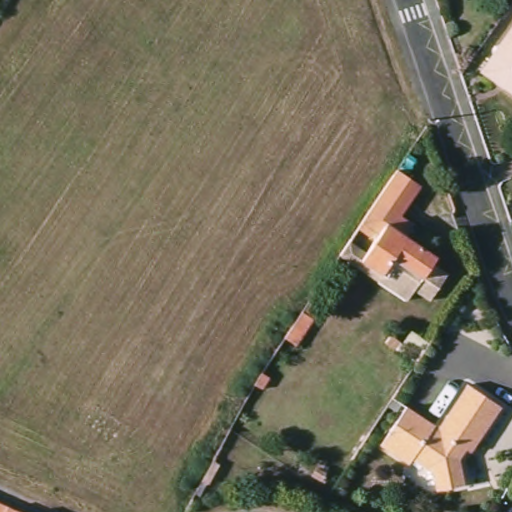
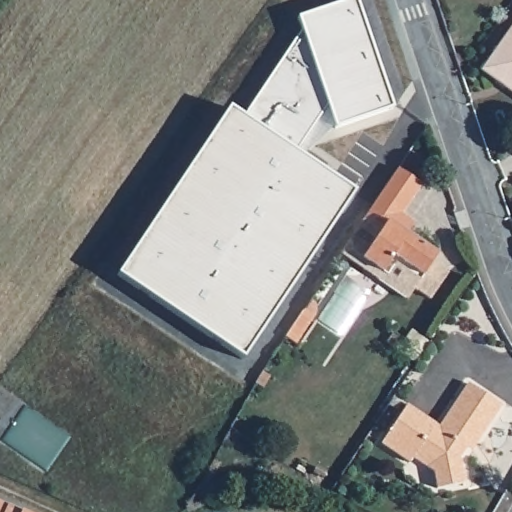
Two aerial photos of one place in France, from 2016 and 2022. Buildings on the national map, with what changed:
new [(242,358),(117,275),(228,109),(242,117),(302,31),(297,18),(350,0),(356,0),(391,105),(334,125),(300,156),(352,192),(242,358)]
unchanged [(481,70),(512,27),(512,92),(481,70)]
unchanged [(400,210),(413,219),(405,231),(435,251),(431,258),(447,269),(430,295),(414,284),(406,295),(340,250),(349,236),(366,248),(375,233),(359,222),(362,217),(366,211),(397,165),(420,180),(400,210)]
unchanged [(343,274),(321,307),(327,311),(317,325),(300,314),(332,267),(343,274)]
unchanged [(391,336),(400,342),(395,350),(385,344),(391,336)]
unchanged [(268,378),(262,388),(255,384),(260,374),(268,378)]
unchanged [(481,439),(476,436),(462,458),(467,484),(440,492),(435,472),(414,457),(410,462),(382,444),(406,406),(440,428),(468,384),(502,407),(481,439)]
unchanged [(37,512),(0,512),(0,496),(35,511),(37,512)]

